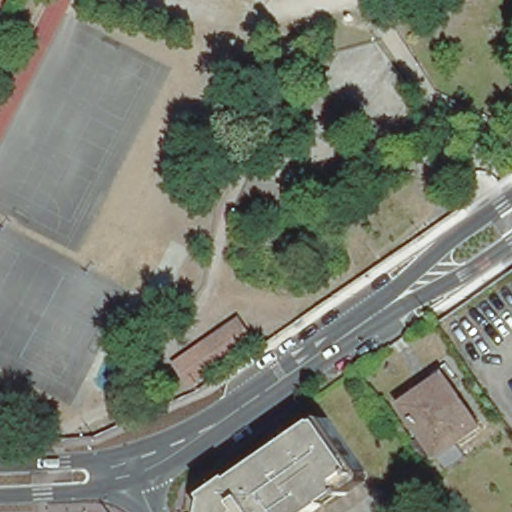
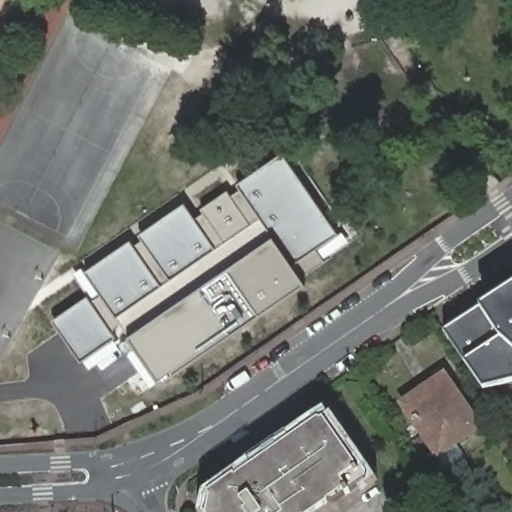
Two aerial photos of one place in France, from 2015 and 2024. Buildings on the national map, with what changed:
new [(324,261),(301,277),(305,283),(260,314),(233,332),(161,382),(129,336),(120,324),(111,330),(116,337),(80,361),(51,320),(87,295),(91,301),(100,295),(84,271),(130,240),(134,245),(142,240),(138,234),(184,202),(195,218),(203,213),(200,209),(227,190),(231,195),(240,190),(236,184),(282,151),(338,233),(316,249),(324,261)]
new [(463,362),(443,331),(479,307),(512,286),(512,382),(482,390),(463,362)]
demolished [(262,345),(210,378),(191,348),(243,314),(262,345)]
unchanged [(441,379),(476,430),(432,461),(398,412),(416,399),(415,397),(441,379)]
unchanged [(246,473),(252,468),(248,462),(295,431),(300,436),(327,418),(362,471),(302,512),(205,512),(206,490),(210,487),(242,466),(246,473)]

